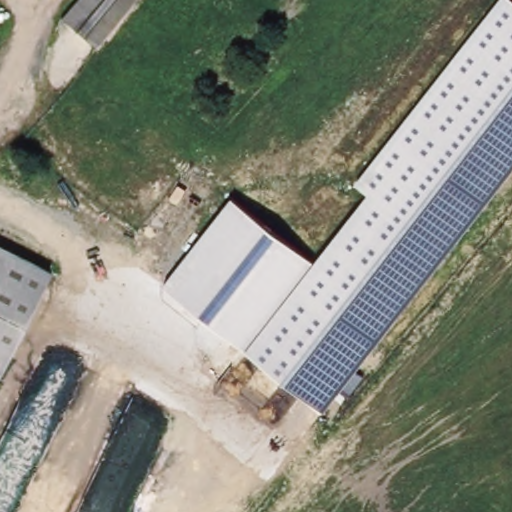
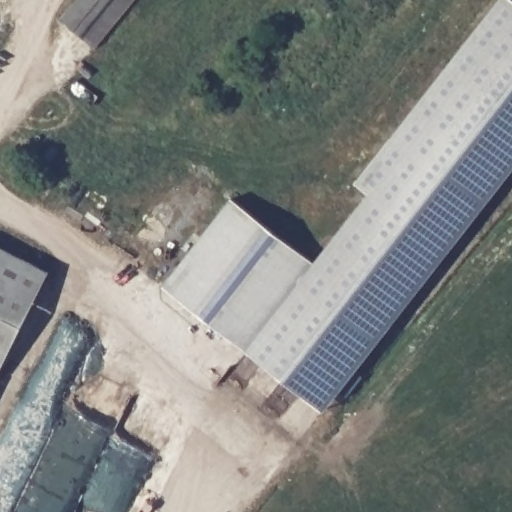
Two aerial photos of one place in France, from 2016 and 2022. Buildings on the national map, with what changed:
unchanged [(60,24),(79,0),(134,0),(92,51),(60,24)]
unchanged [(165,285),(232,197),(316,261),(369,194),(355,183),(499,0),(512,0),(512,170),(324,411),(246,351),(165,285)]
unchanged [(0,373),(0,244),(48,266),(0,373)]

